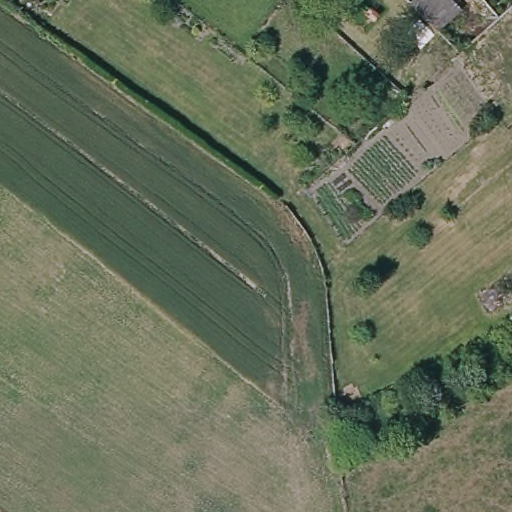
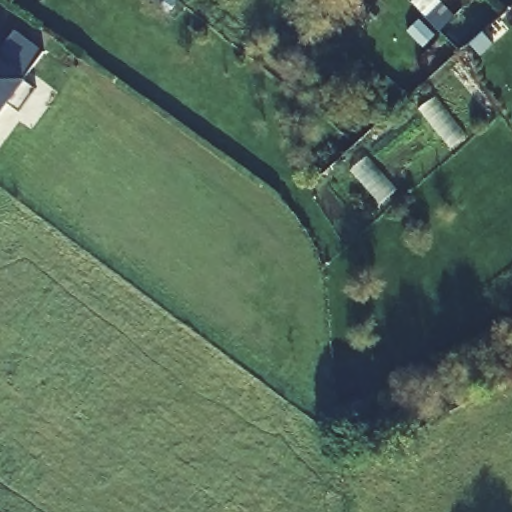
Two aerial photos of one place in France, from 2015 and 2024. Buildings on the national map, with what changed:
unchanged [(454,0),(460,6),(435,33),(408,2),(410,0),(454,0)]
new [(43,50),(23,78),(35,86),(20,110),(8,101),(0,113),(0,50),(15,29),(43,50)]

